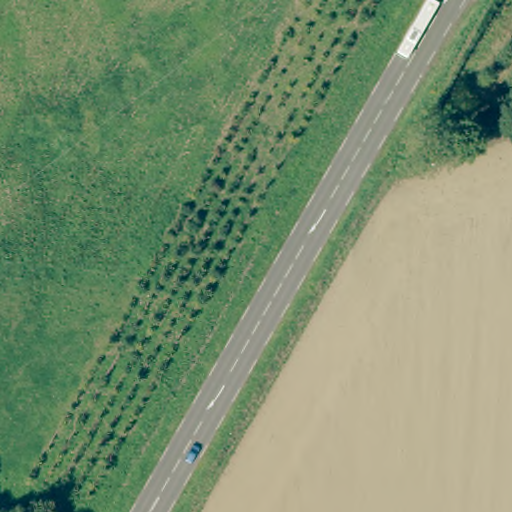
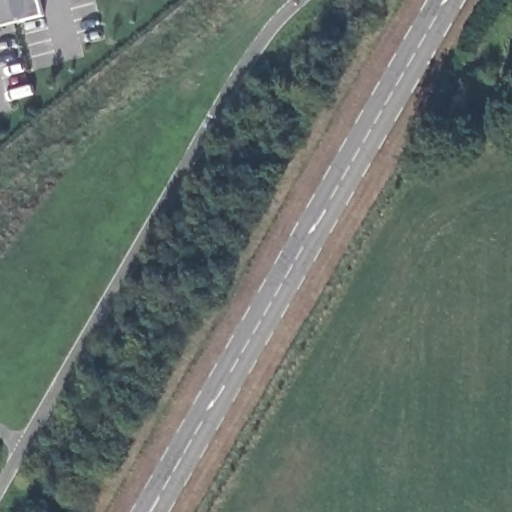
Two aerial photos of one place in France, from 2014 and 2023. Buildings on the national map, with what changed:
new [(0,29),(0,0),(41,0),(45,17),(0,29)]

